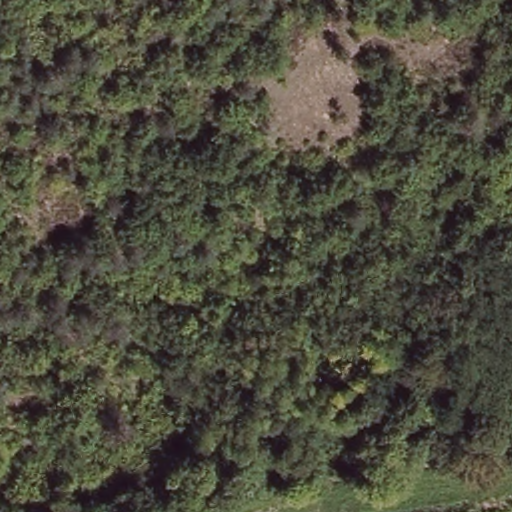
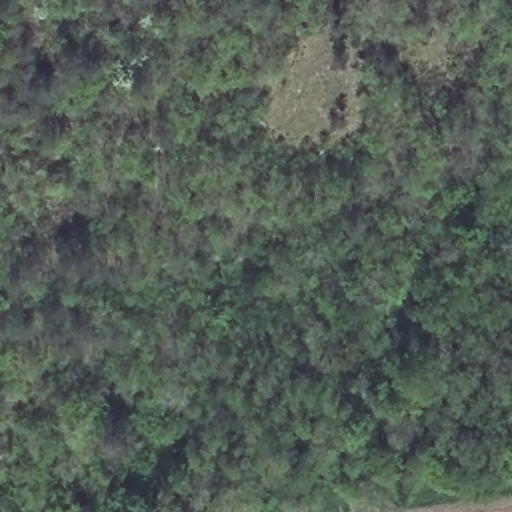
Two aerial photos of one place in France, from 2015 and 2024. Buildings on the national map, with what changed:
unchanged [(392,400),(377,374),(441,336),(457,362),(392,400)]

